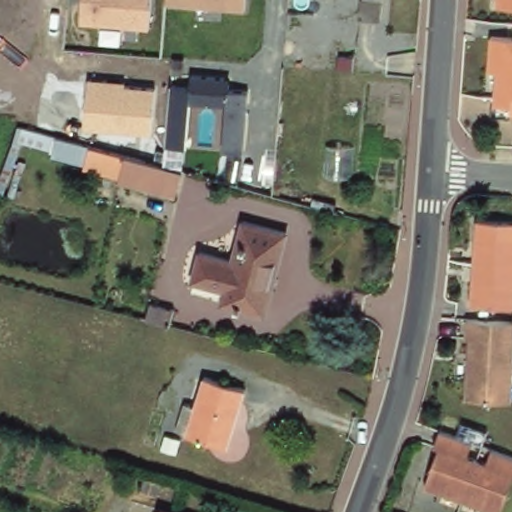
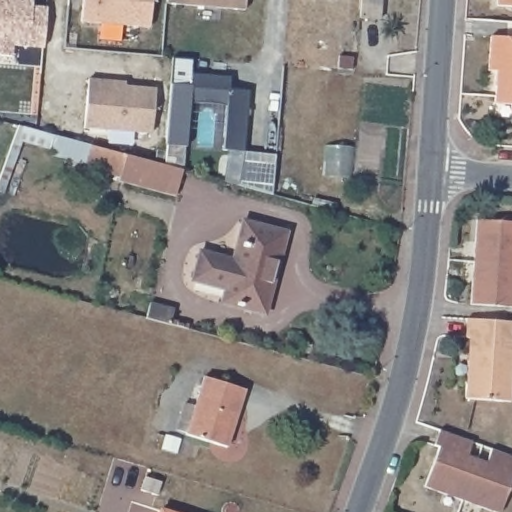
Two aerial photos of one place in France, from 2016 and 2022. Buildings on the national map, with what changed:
new [(0,55),(0,0),(4,0),(14,0),(15,0),(32,0),(28,46),(12,44),(11,55),(0,55)]
unchanged [(79,22),(81,0),(151,0),(151,28),(79,22)]
unchanged [(165,5),(165,0),(246,0),(245,10),(165,5)]
unchanged [(358,17),(360,0),(380,0),(378,20),(358,17)]
unchanged [(496,6),(496,0),(512,0),(512,7),(496,6)]
new [(46,7),(43,47),(28,46),(31,5),(46,7)]
unchanged [(509,120),(510,111),(493,110),(494,101),(495,77),(488,76),(490,42),(512,43),(512,120),(509,120)]
unchanged [(166,146),(171,85),(192,86),(192,75),(230,79),(230,90),(249,92),(244,152),(224,150),(227,106),(190,103),(187,147),(183,147),(181,175),(177,174),(164,170),(166,146)]
unchanged [(89,80),(126,82),(126,86),(156,89),(151,134),(84,128),(89,80)]
unchanged [(85,170),(86,167),(50,157),(52,151),(23,144),(4,194),(0,192),(0,176),(19,126),(56,137),(91,146),(120,154),(120,158),(115,178),(85,170)]
unchanged [(169,199),(114,184),(120,158),(177,174),(169,199)]
unchanged [(477,218),(512,220),(512,305),(471,302),(474,260),(477,218)]
unchanged [(191,286),(199,257),(232,266),(243,226),(285,237),(264,320),(220,308),(224,295),(191,286)]
unchanged [(149,305),(173,310),(169,325),(145,319),(149,305)]
unchanged [(460,336),(461,318),(480,320),(511,321),(506,400),(461,397),(464,360),(466,360),(468,337),(460,336)]
unchanged [(244,390),(227,447),(187,435),(204,378),(244,390)]
unchanged [(434,448),(439,433),(459,440),(473,445),(467,461),(476,465),(486,468),(492,452),(499,455),(506,457),(512,460),(512,485),(502,512),(484,512),(463,504),(424,490),(439,450),(434,448)]
unchanged [(139,491),(144,478),(159,482),(155,495),(139,491)]
unchanged [(160,510),(166,512),(159,512),(160,510)]

